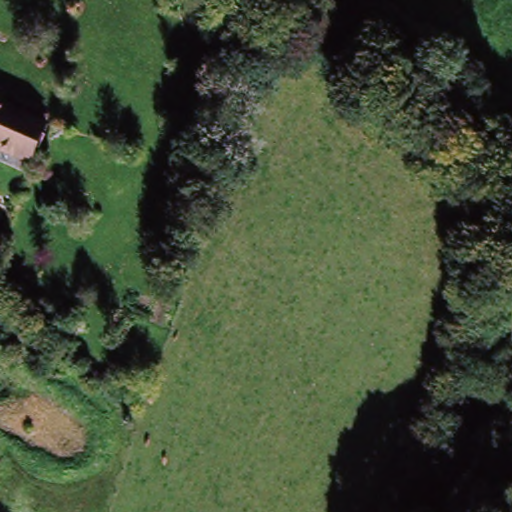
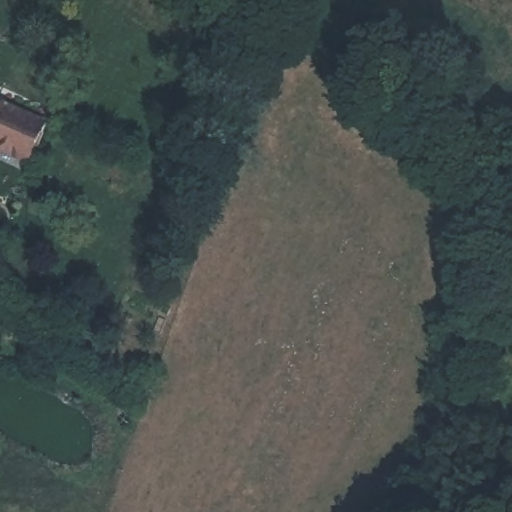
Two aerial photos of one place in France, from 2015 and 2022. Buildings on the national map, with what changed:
unchanged [(31,166),(0,152),(0,105),(48,127),(31,166)]

